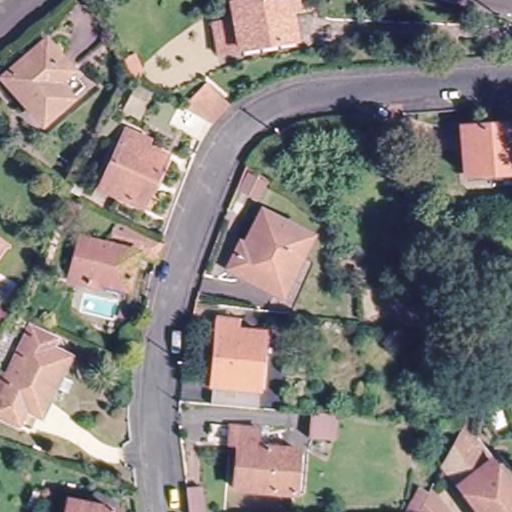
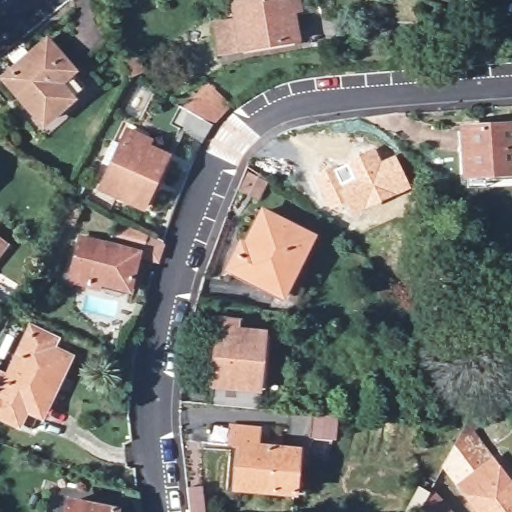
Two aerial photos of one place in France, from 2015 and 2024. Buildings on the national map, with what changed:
unchanged [(286,0),(287,8),(283,10),(290,42),(232,55),(224,8),(256,0),(286,0)]
unchanged [(62,85),(77,103),(38,131),(0,85),(0,75),(48,36),(77,73),(62,85)]
unchanged [(207,140),(174,118),(182,101),(207,76),(232,102),(225,111),(216,121),(214,128),(207,140)]
unchanged [(512,175),(460,178),(455,131),(512,126),(512,175)]
unchanged [(124,131),(140,139),(136,148),(163,159),(142,208),(100,191),(124,131)]
new [(375,148),(381,161),(395,155),(411,189),(349,216),(342,205),(328,211),(313,175),(375,148)]
unchanged [(71,224),(58,218),(67,201),(80,208),(71,224)]
unchanged [(237,248),(245,252),(262,215),(309,238),(284,295),(235,273),(227,270),(237,248)]
unchanged [(148,271),(132,265),(121,296),(96,287),(94,293),(63,282),(77,245),(90,251),(92,245),(103,250),(102,255),(122,262),(132,239),(155,252),(148,271)]
unchanged [(4,245),(0,251),(0,242),(4,245)]
unchanged [(205,386),(212,314),(236,315),(236,328),(263,330),(255,390),(205,386)]
unchanged [(61,332),(56,347),(73,357),(40,424),(24,417),(17,430),(0,421),(0,375),(27,323),(61,332)]
unchanged [(293,445),(297,413),(322,415),(317,449),(308,448),(293,445)]
unchanged [(512,512),(478,512),(441,463),(463,423),(512,489),(512,512)]
unchanged [(237,425),(254,427),(252,433),(286,438),(279,496),(231,491),(237,425)]
unchanged [(448,512),(413,512),(427,486),(448,512)]
unchanged [(194,495),(196,512),(187,512),(185,496),(194,495)]
unchanged [(110,512),(62,512),(64,502),(110,512)]

